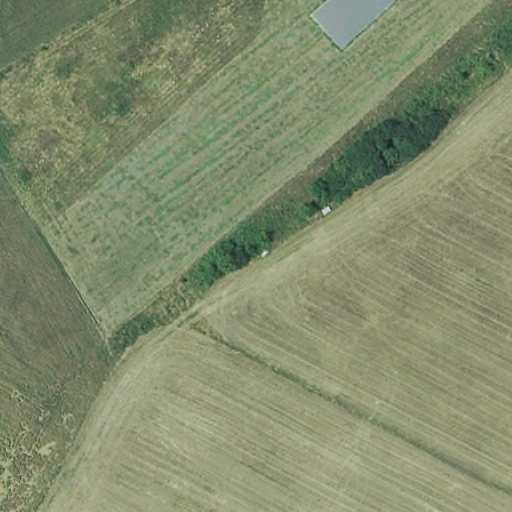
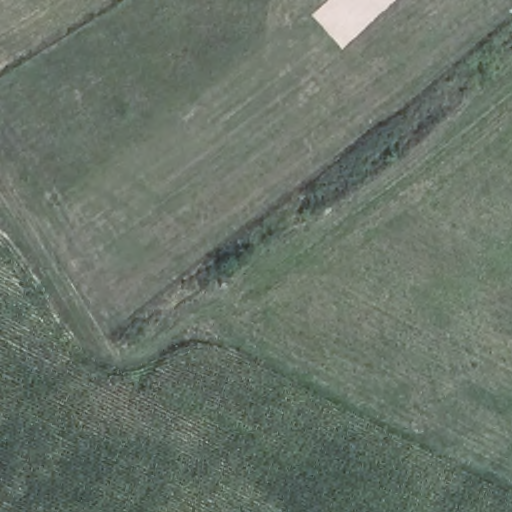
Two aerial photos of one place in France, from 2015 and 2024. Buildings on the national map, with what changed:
[]

